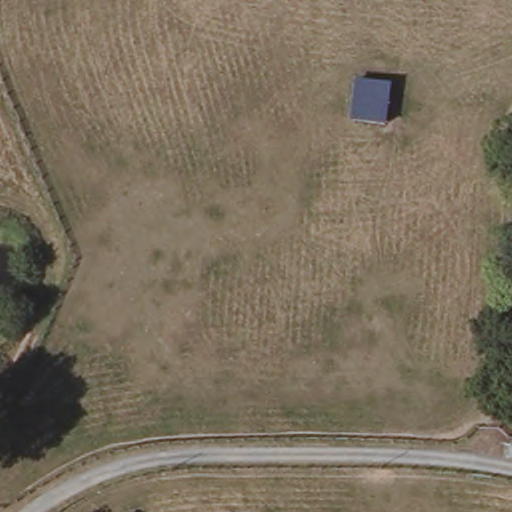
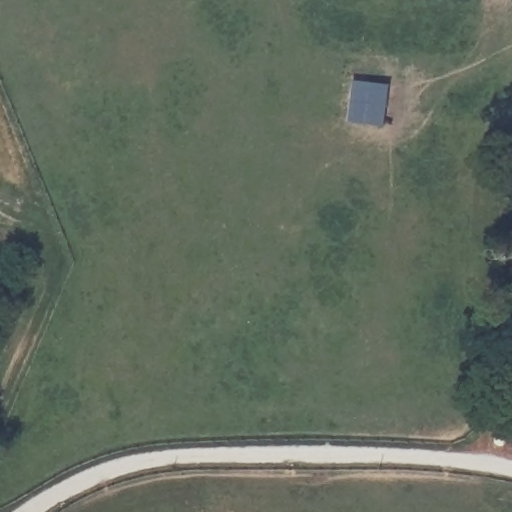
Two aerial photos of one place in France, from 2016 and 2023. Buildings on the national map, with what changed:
unchanged [(346,122),(350,82),(387,85),(383,127),(346,122)]

